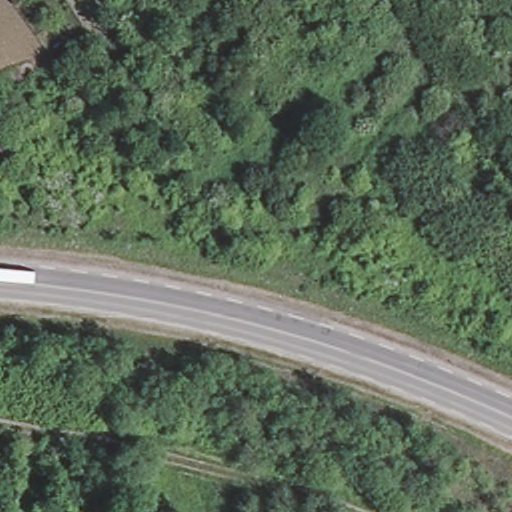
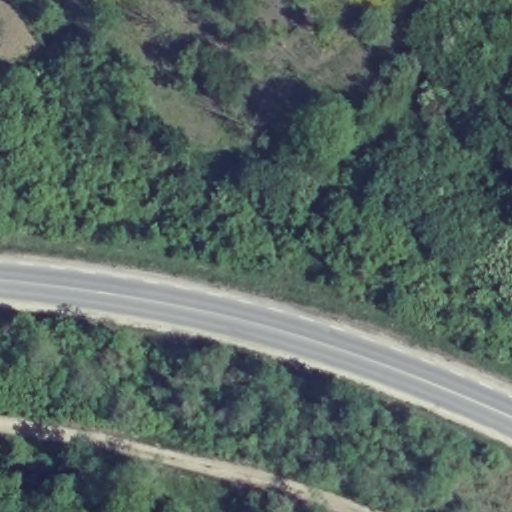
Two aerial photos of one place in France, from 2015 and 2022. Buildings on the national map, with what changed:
unchanged [(0,163),(0,133),(15,150),(0,163)]

